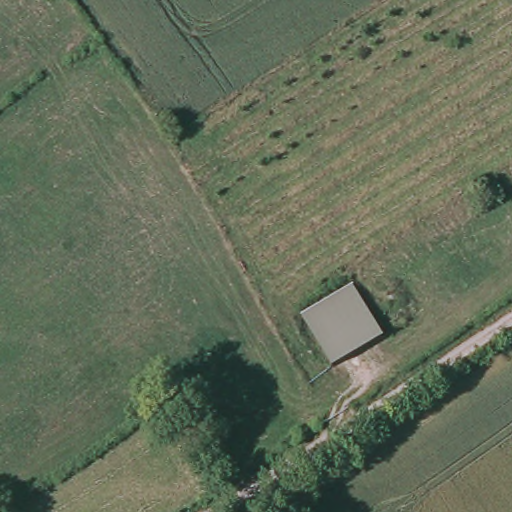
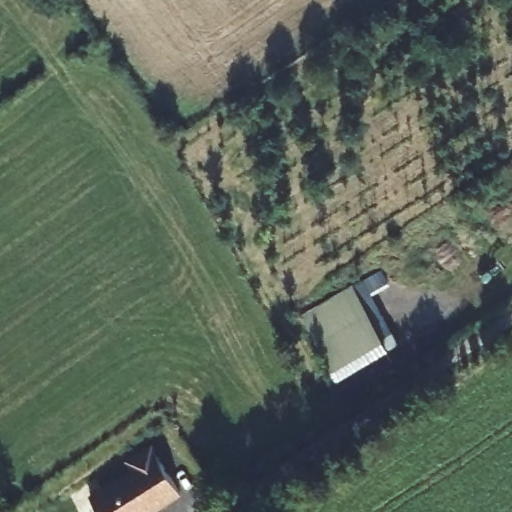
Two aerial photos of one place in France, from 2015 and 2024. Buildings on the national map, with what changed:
unchanged [(350,281),(379,332),(330,361),(300,310),(350,281)]
new [(157,503),(143,512),(98,512),(90,500),(134,471),(129,462),(152,447),(181,494),(160,507),(157,503)]

